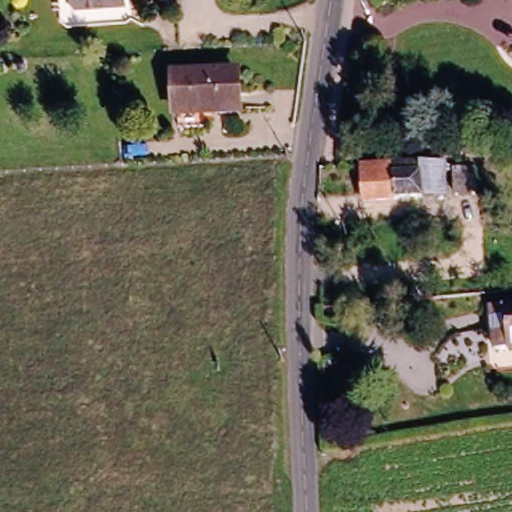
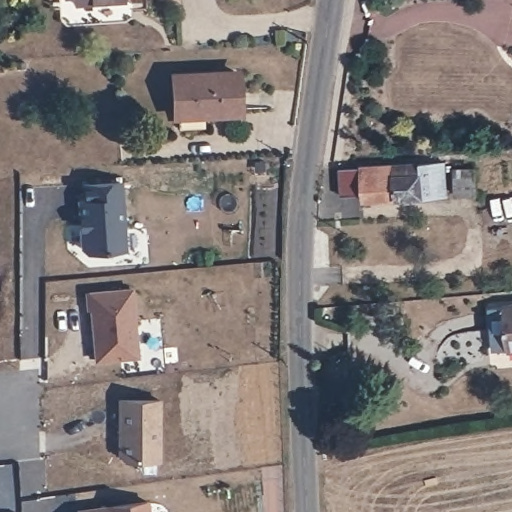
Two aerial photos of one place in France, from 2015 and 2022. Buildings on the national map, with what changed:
unchanged [(71,0),(104,0),(72,2),(71,0)]
unchanged [(169,78),(232,75),(233,112),(170,115),(169,78)]
unchanged [(365,168),(397,166),(445,162),(448,197),(360,205),(357,169),(365,168)]
new [(128,250),(80,253),(77,199),(82,199),(82,183),(122,179),(128,250)]
new [(133,286),(142,357),(95,362),(90,311),(87,311),(85,292),(133,286)]
unchanged [(512,302),(512,346),(506,347),(504,303),(512,302)]
new [(162,398),(162,461),(123,461),(117,454),(117,399),(162,398)]
new [(105,505),(150,498),(151,512),(77,512),(77,509),(105,505)]

